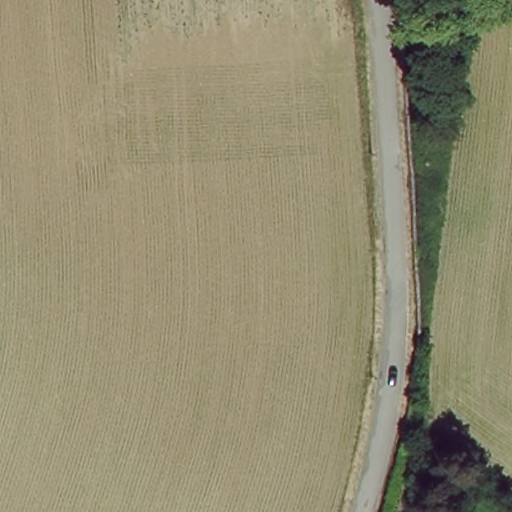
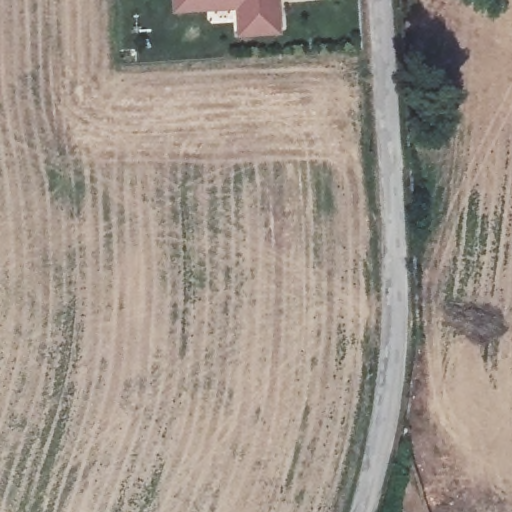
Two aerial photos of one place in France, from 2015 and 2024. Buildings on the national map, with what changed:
new [(238,36),(236,9),(173,13),(172,0),(279,0),(280,35),(238,36)]

